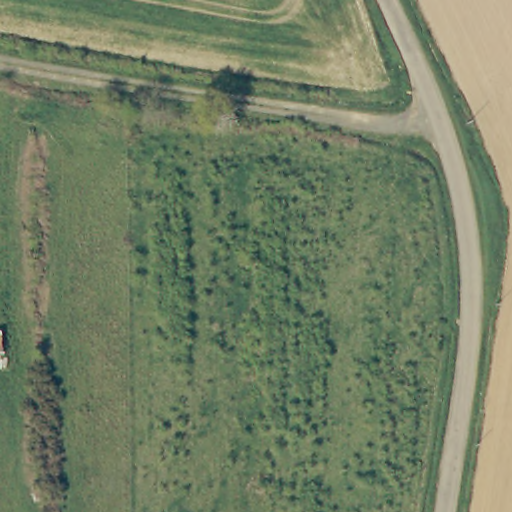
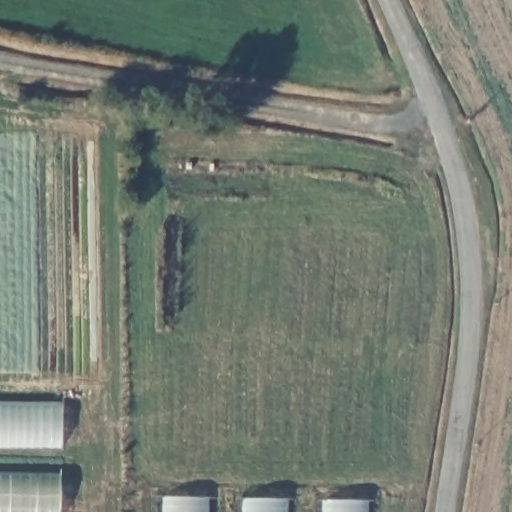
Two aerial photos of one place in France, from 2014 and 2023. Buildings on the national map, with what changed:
new [(0,448),(0,400),(63,401),(64,448),(0,448)]
new [(62,512),(0,512),(0,471),(62,472),(62,512)]

